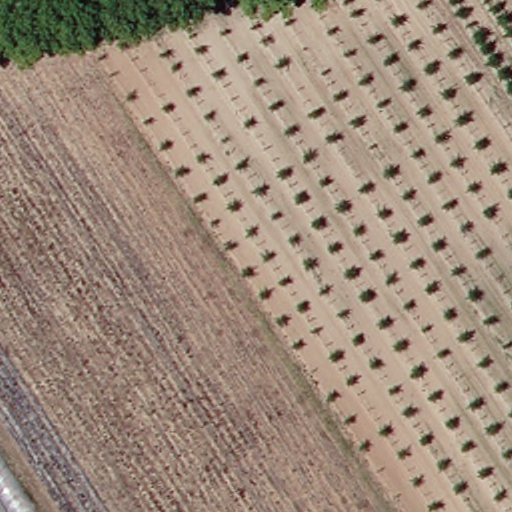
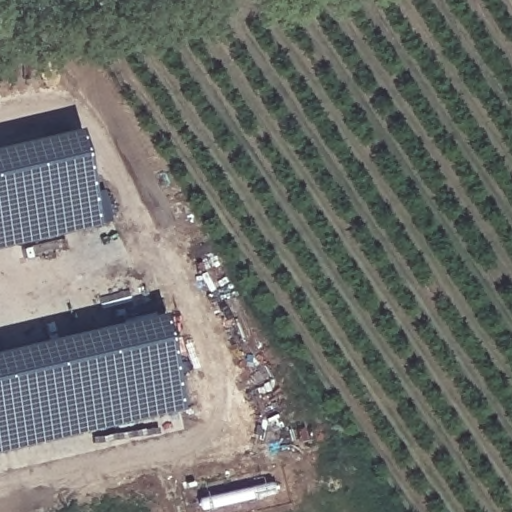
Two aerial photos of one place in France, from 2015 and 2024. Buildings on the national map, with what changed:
new [(0,248),(0,149),(66,134),(91,227),(0,248)]
new [(0,453),(0,355),(148,320),(174,412),(0,453)]

